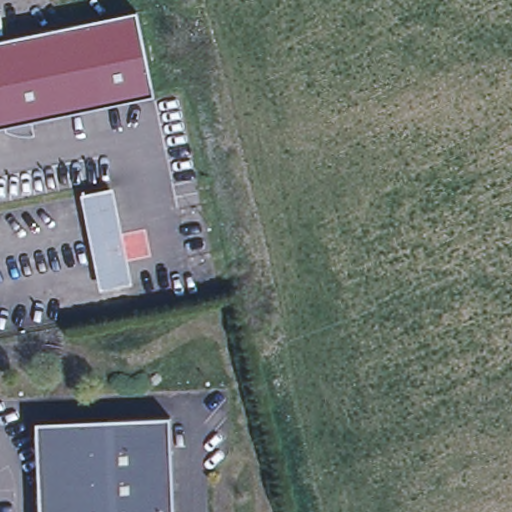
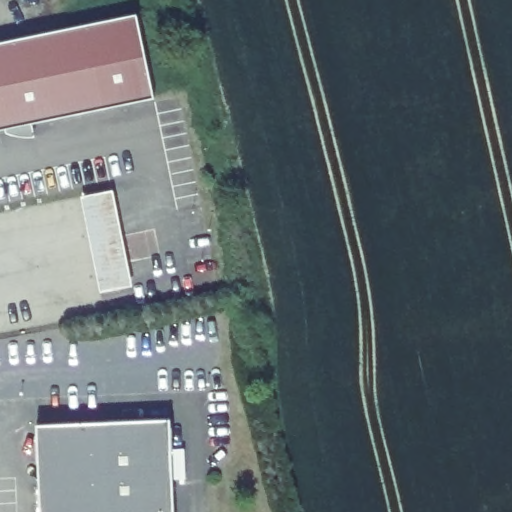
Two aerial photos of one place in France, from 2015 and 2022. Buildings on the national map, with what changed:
unchanged [(0,128),(0,41),(136,13),(137,14),(154,97),(0,128)]
unchanged [(116,212),(131,286),(102,291),(88,219),(83,196),(111,190),(116,212)]
unchanged [(174,512),(61,512),(41,452),(37,423),(170,418),(174,512)]

